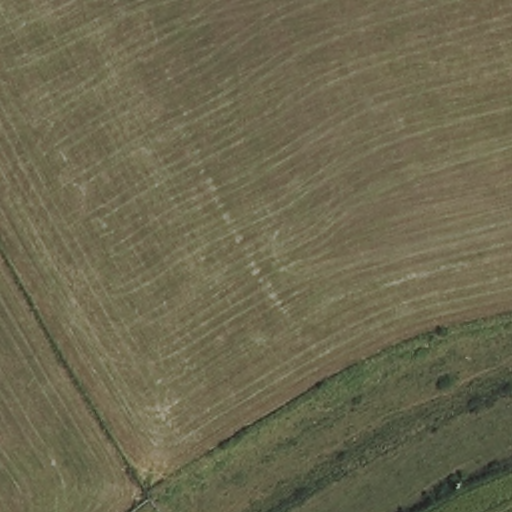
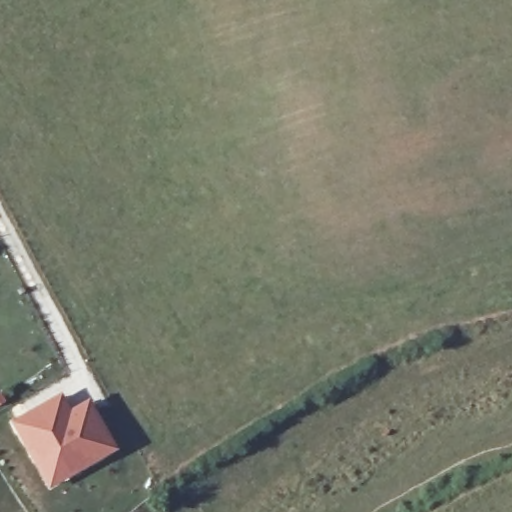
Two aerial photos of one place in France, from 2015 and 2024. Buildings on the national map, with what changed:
new [(61,393),(73,410),(89,400),(118,450),(48,489),(11,422),(61,393)]

